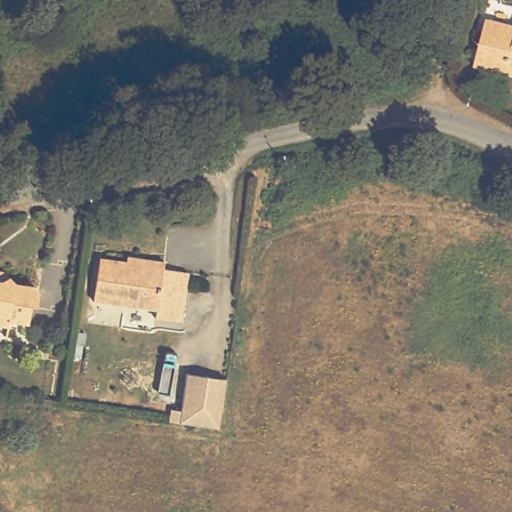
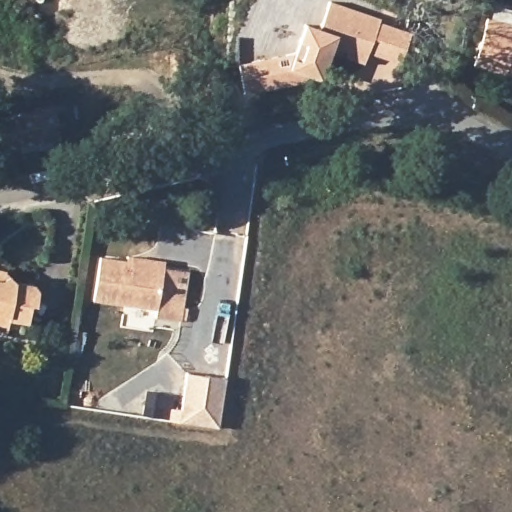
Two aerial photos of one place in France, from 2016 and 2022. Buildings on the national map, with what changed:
new [(294,52),(303,24),(318,29),(328,1),(380,17),(379,22),(408,32),(396,64),(366,55),(363,66),(330,56),(322,77),(241,94),(237,64),(294,52)]
unchanged [(473,66),(486,18),(512,25),(512,76),(505,74),(473,66)]
new [(26,154),(9,157),(2,120),(59,109),(60,117),(65,146),(26,154)]
unchanged [(164,269),(189,273),(181,322),(155,318),(156,311),(93,301),(100,257),(126,262),(127,257),(149,260),(165,262),(164,269)]
unchanged [(0,326),(0,272),(2,272),(9,277),(15,283),(34,287),(38,292),(35,307),(30,306),(28,324),(9,321),(8,327),(0,326)]
unchanged [(211,297),(211,305),(205,309),(197,306),(197,297),(205,293),(211,297)]
unchanged [(225,378),(217,430),(180,425),(180,428),(169,427),(170,408),(181,411),(185,373),(225,378)]

